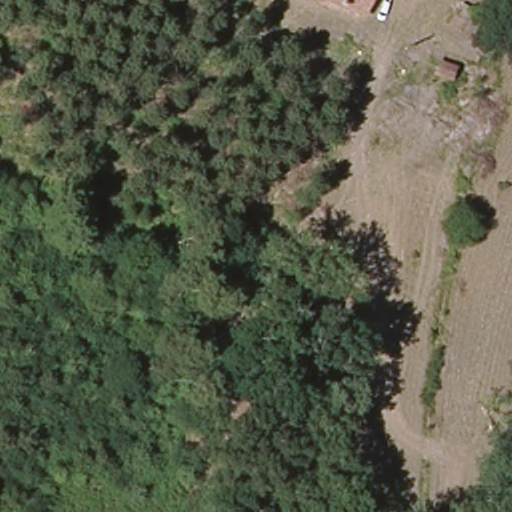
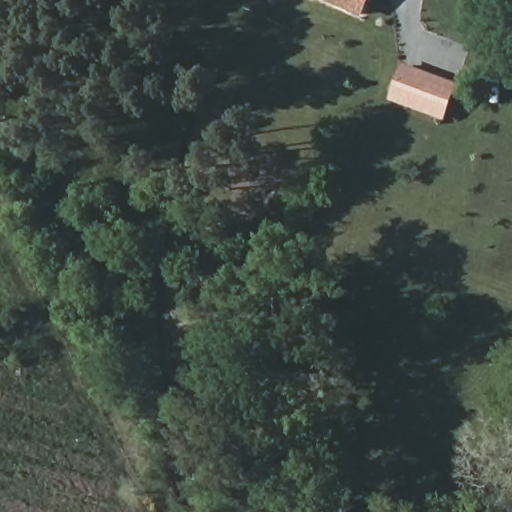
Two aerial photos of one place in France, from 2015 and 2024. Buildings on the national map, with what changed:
unchanged [(333,0),(378,0),(372,16),(349,6),(333,0)]
demolished [(466,4),(486,15),(477,36),(452,27),(466,4)]
new [(459,85),(445,122),(388,101),(402,64),(459,85)]

